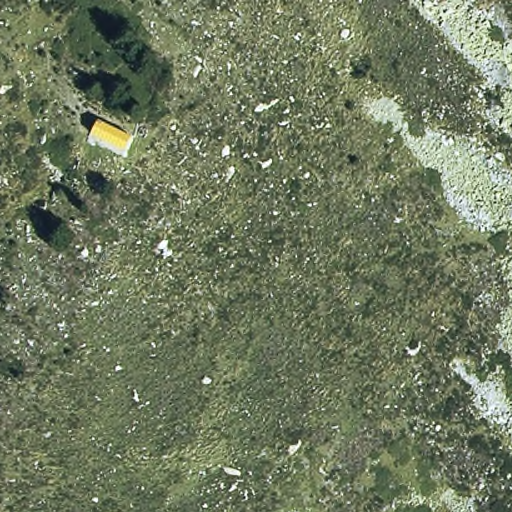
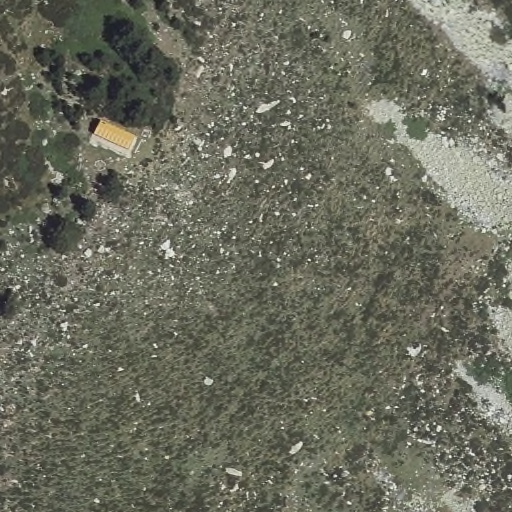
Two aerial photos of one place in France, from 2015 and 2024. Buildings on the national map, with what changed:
unchanged [(101,125),(137,142),(130,154),(94,140),(101,125)]

